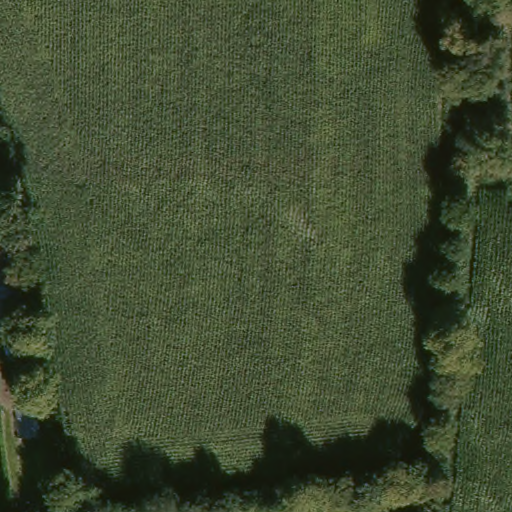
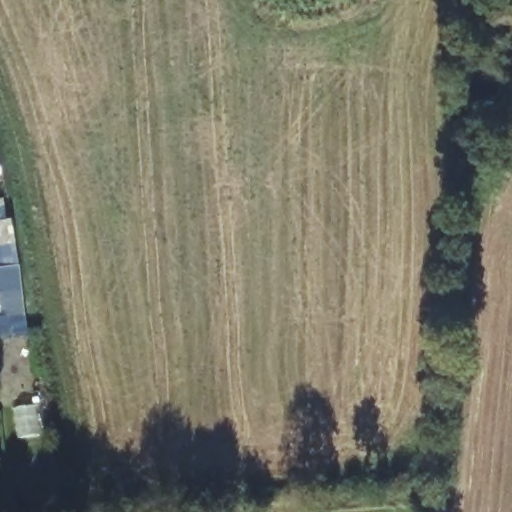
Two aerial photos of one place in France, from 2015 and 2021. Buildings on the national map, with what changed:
new [(0,338),(0,317),(4,315),(0,283),(0,201),(4,200),(7,220),(13,220),(29,335),(0,338)]

